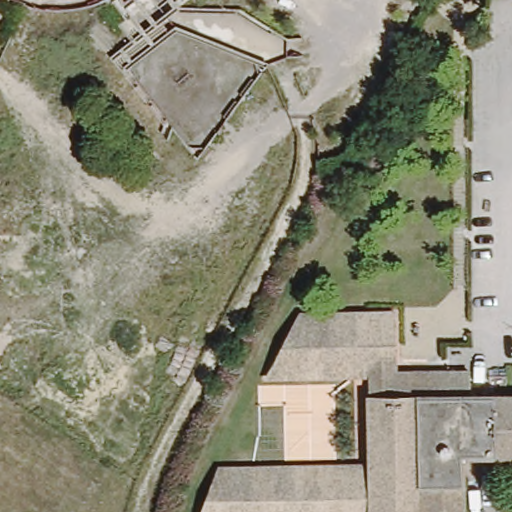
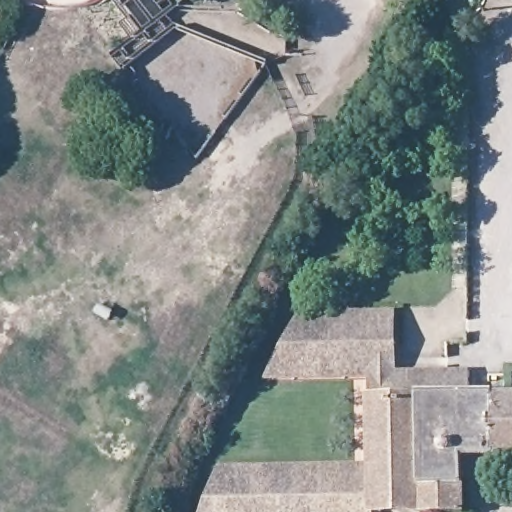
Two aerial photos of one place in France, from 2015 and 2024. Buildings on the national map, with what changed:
unchanged [(355,310),(388,312),(388,311),(392,310),(393,373),(365,376),(353,375),(325,377),(271,376),(301,309),(355,310)]
unchanged [(456,396),(365,401),(365,376),(393,373),(455,368),(456,396)]
unchanged [(365,506),(365,463),(365,401),(456,396),(512,394),(512,464),(477,466),(472,506),(365,506)]
unchanged [(225,465),(285,466),(314,463),(365,463),(365,506),(365,512),(199,512),(225,465)]

